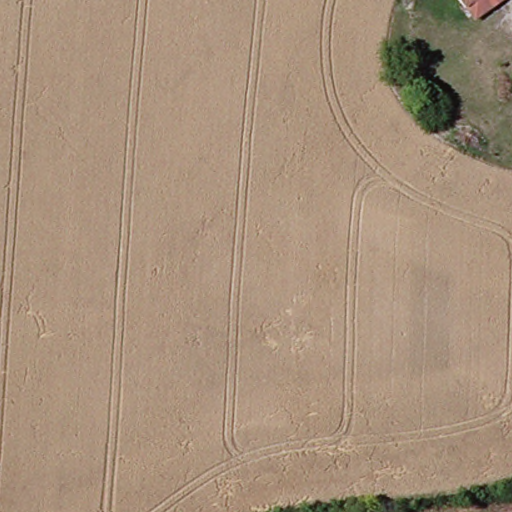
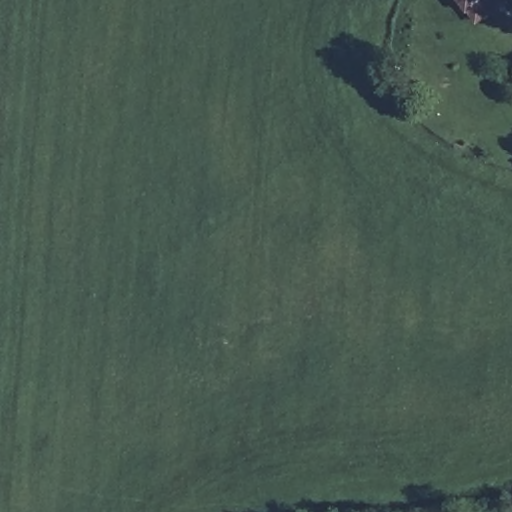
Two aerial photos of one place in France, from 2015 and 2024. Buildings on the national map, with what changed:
unchanged [(487,0),(472,11),(464,0),(487,0)]

